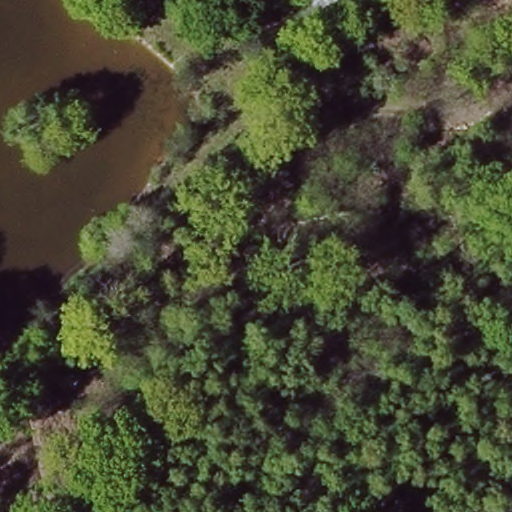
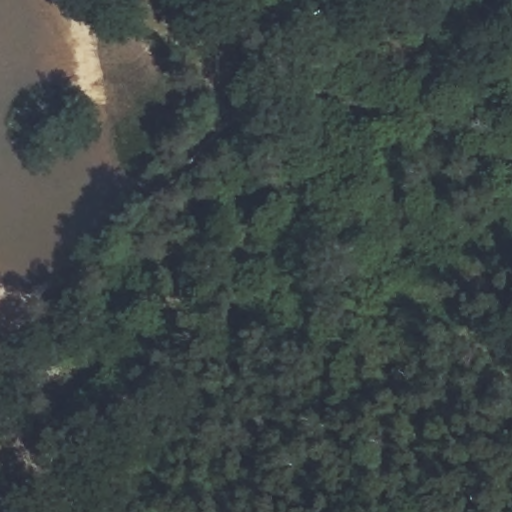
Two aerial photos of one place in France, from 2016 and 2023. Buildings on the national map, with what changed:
[]

